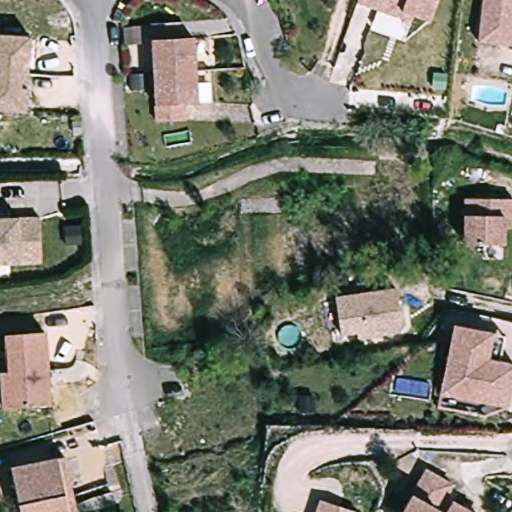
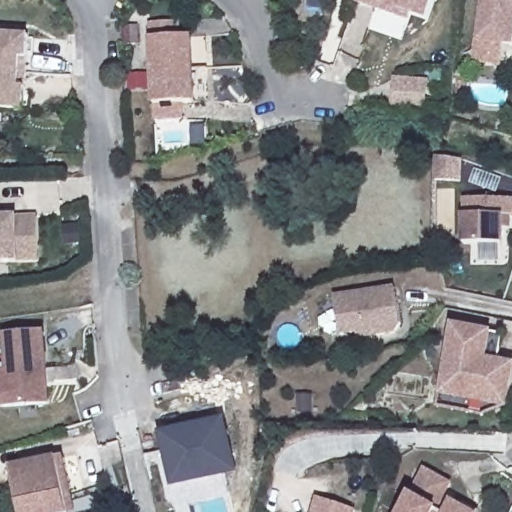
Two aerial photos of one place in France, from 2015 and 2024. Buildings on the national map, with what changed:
unchanged [(375,6),(354,0),(432,0),(427,17),(410,11),(408,18),(375,6)]
unchanged [(487,34),(490,0),(512,0),(512,37),(487,34)]
unchanged [(194,70),(152,72),(149,23),(179,21),(180,37),(192,36),(194,70)]
unchanged [(0,110),(0,34),(28,36),(24,111),(0,110)]
unchanged [(196,103),(182,104),(183,120),(154,121),(152,72),(194,70),(196,103)]
new [(393,75),(423,76),(422,106),(392,105),(393,75)]
unchanged [(504,225),(504,241),(465,240),(466,195),(512,196),(512,214),(512,225),(504,225)]
unchanged [(38,262),(0,263),(0,217),(37,216),(38,262)]
unchanged [(356,327),(341,329),(336,293),(397,285),(401,320),(394,328),(365,332),(357,333),(356,327)]
unchanged [(508,406),(441,392),(456,324),(494,332),(506,334),(500,361),(512,364),(512,386),(508,406)]
unchanged [(2,334),(45,330),(50,405),(0,409),(0,371),(5,371),(2,334)]
unchanged [(296,395),(310,395),(309,409),(295,409),(296,395)]
new [(158,432),(226,417),(237,472),(171,486),(158,432)]
unchanged [(67,512),(18,512),(8,465),(55,455),(67,512)]
unchanged [(452,482),(444,495),(476,512),(401,512),(425,467),(452,482)]
unchanged [(314,512),(317,502),(345,512),(314,512)]

